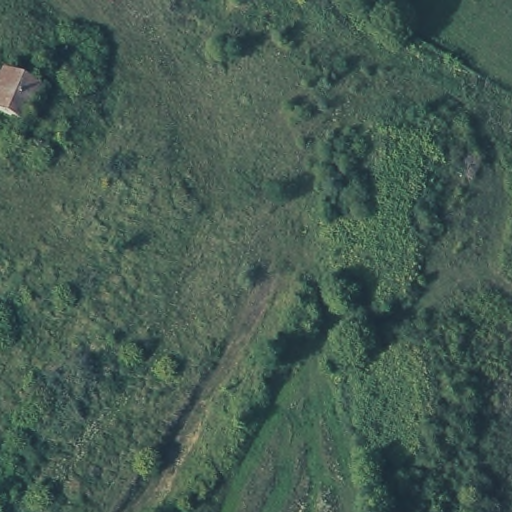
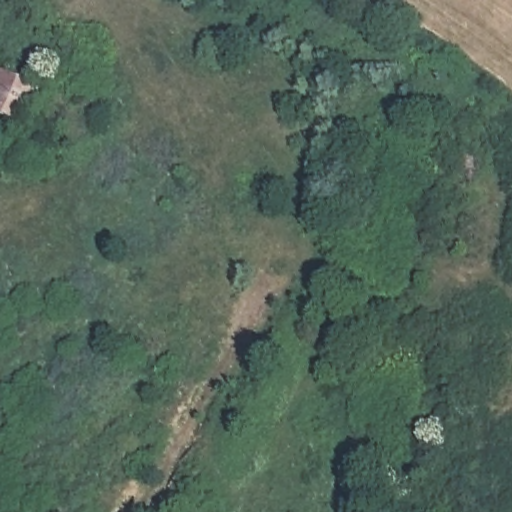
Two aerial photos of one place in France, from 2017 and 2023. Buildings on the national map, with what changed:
unchanged [(23,117),(17,115),(14,125),(0,120),(0,116),(2,110),(0,109),(0,72),(3,64),(39,80),(23,117)]

